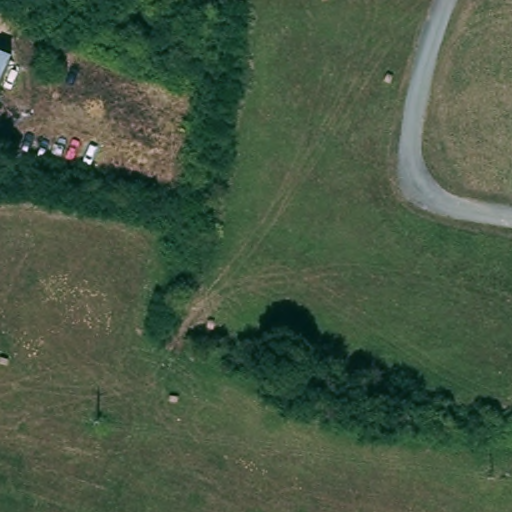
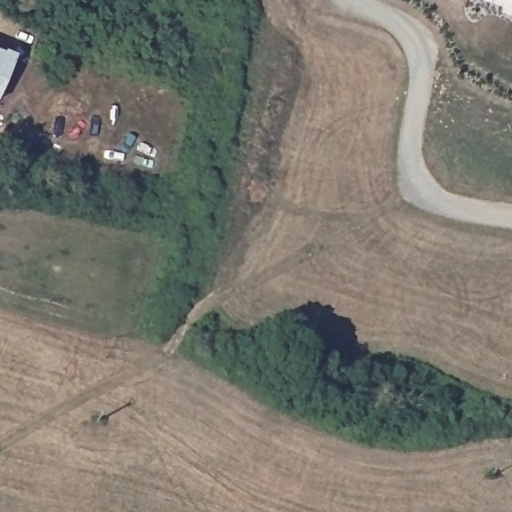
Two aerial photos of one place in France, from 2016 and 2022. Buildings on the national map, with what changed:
unchanged [(10,60),(0,83),(0,55),(10,60)]

